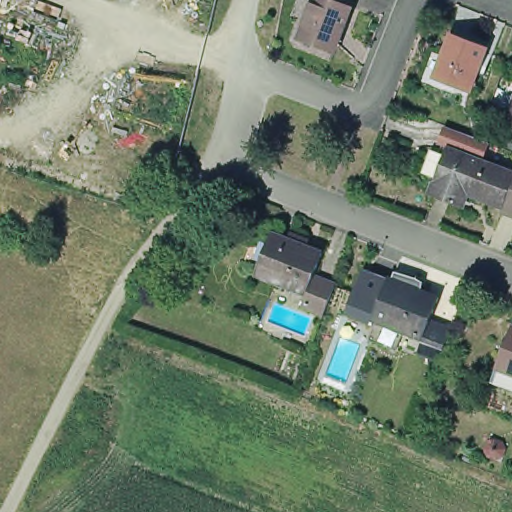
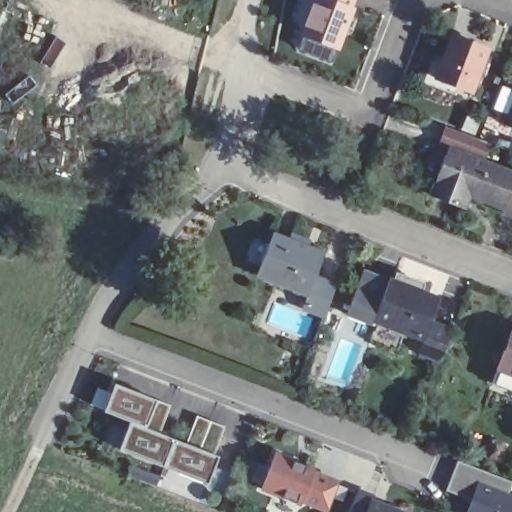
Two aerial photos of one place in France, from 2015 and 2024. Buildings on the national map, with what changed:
unchanged [(330,46),(295,34),(307,0),(344,0),(343,2),(346,3),(330,46)]
unchanged [(467,80),(431,66),(447,25),(483,39),(467,80)]
unchanged [(512,93),(512,129),(500,124),(512,93)]
unchanged [(430,189),(448,142),(512,167),(512,182),(504,203),(469,189),(464,202),(455,198),(430,189)]
unchanged [(504,203),(512,182),(512,211),(503,207),(504,203)]
unchanged [(303,306),(309,293),(258,273),(274,232),(325,252),(316,275),(336,283),(324,314),(303,306)]
new [(370,326),(346,316),(365,268),(390,277),(374,318),(370,326)]
unchanged [(440,359),(419,351),(424,338),(374,318),(390,277),(407,284),(410,278),(417,281),(414,287),(440,296),(431,319),(452,328),(440,359)]
unchanged [(512,329),(512,386),(493,378),(499,363),(512,329)]
new [(118,449),(129,422),(103,411),(114,383),(154,399),(171,406),(161,433),(184,442),(195,415),(226,427),(216,456),(219,457),(209,484),(118,449)]
demolished [(81,461),(52,445),(74,400),(103,412),(81,461)]
new [(326,512),(302,503),(301,506),(259,490),(273,451),(316,466),(315,469),(339,479),(326,512)]
new [(446,490),(458,460),(512,481),(512,483),(508,492),(512,494),(512,512),(464,512),(469,499),(446,490)]
new [(374,493),(372,498),(409,512),(350,512),(359,487),(374,493)]

